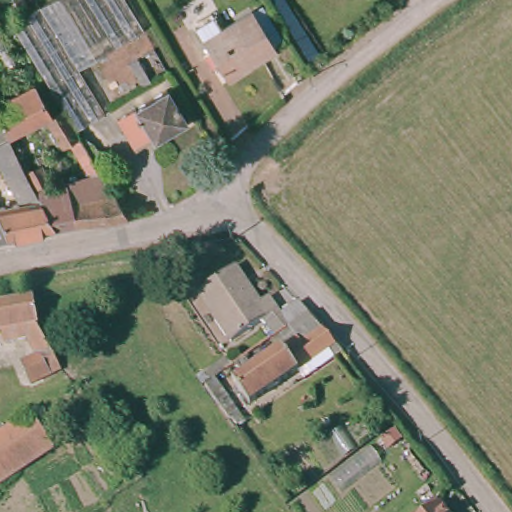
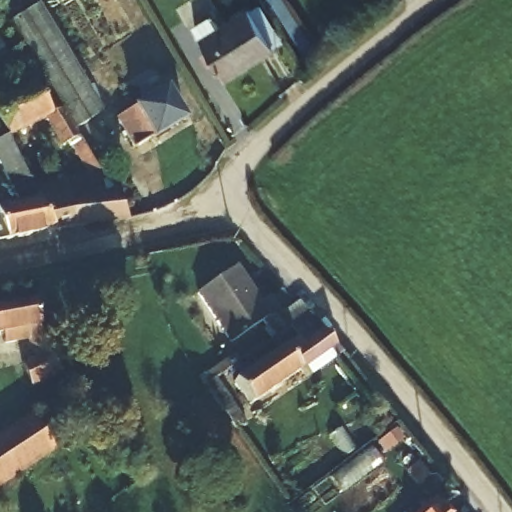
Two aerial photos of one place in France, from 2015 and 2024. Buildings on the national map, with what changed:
unchanged [(9,0),(30,0),(14,8),(9,0)]
unchanged [(130,0),(144,25),(83,62),(113,112),(79,129),(65,106),(13,17),(44,0),(130,0)]
unchanged [(184,34),(203,20),(212,33),(242,16),(254,9),(277,45),(264,53),(216,84),(184,34)]
unchanged [(168,85),(190,121),(156,140),(154,135),(136,144),(119,113),(168,85)]
unchanged [(83,220),(74,222),(71,214),(63,187),(90,176),(70,142),(62,145),(38,122),(7,138),(0,124),(0,95),(3,102),(33,86),(48,114),(65,106),(79,129),(98,160),(131,217),(83,220)]
unchanged [(63,187),(71,214),(74,222),(53,228),(0,242),(0,213),(18,204),(0,169),(0,142),(7,138),(24,173),(40,165),(47,177),(58,172),(63,187)]
unchanged [(258,318),(224,342),(191,294),(229,266),(239,280),(236,283),(251,304),(261,298),(274,315),(289,303),(291,302),(301,315),(280,329),(271,335),(258,318)]
unchanged [(28,381),(19,366),(35,358),(24,339),(1,342),(0,332),(0,303),(25,299),(27,310),(28,320),(56,366),(28,381)]
unchanged [(223,383),(288,338),(294,346),(316,331),(329,346),(241,408),(223,383)]
unchanged [(30,417),(53,450),(0,485),(0,438),(30,417)]
unchanged [(398,432),(404,440),(392,450),(386,442),(398,432)]
unchanged [(452,497),(434,512),(423,512),(448,492),(452,497)]
unchanged [(452,497),(453,497),(465,512),(434,512),(452,497)]

